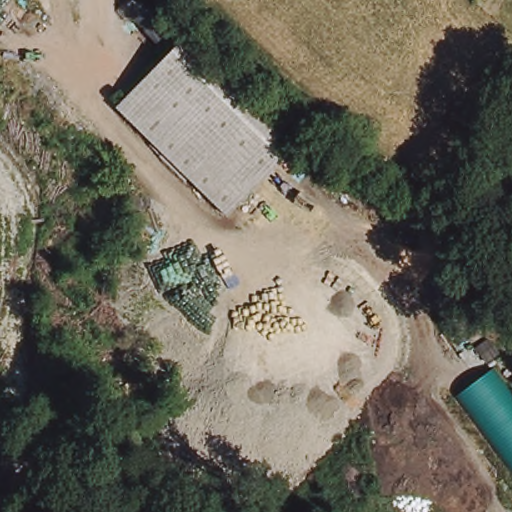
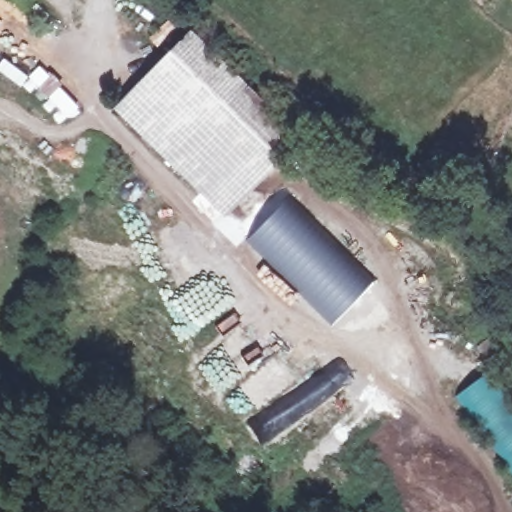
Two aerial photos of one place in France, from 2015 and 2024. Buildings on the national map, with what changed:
unchanged [(300,151),(225,226),(116,120),(191,45),(300,151)]
new [(289,194),(375,279),(331,326),(245,239),(289,194)]
unchanged [(456,398),(495,369),(512,391),(512,471),(456,398)]

